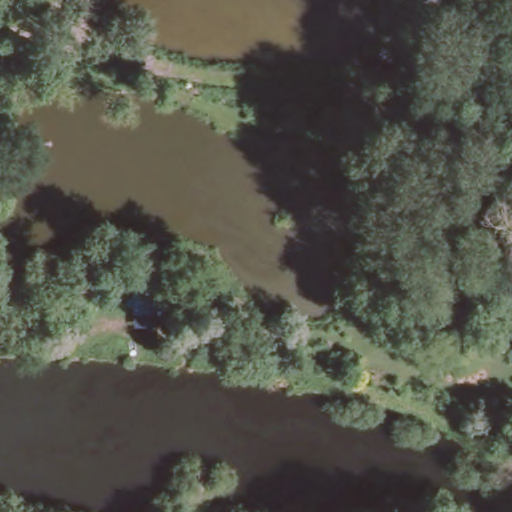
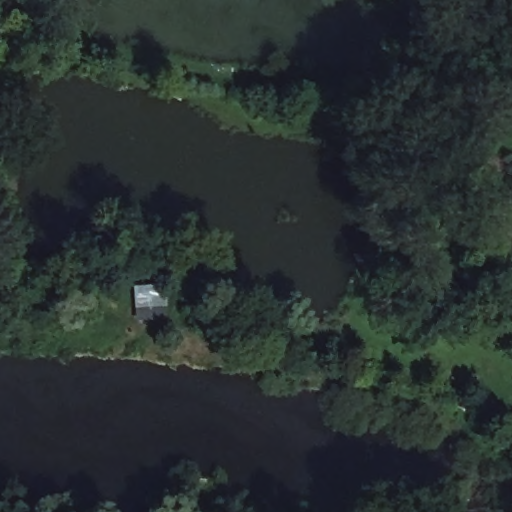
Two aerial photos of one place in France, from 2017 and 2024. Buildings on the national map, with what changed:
unchanged [(0,83),(0,68),(9,71),(5,85),(0,83)]

